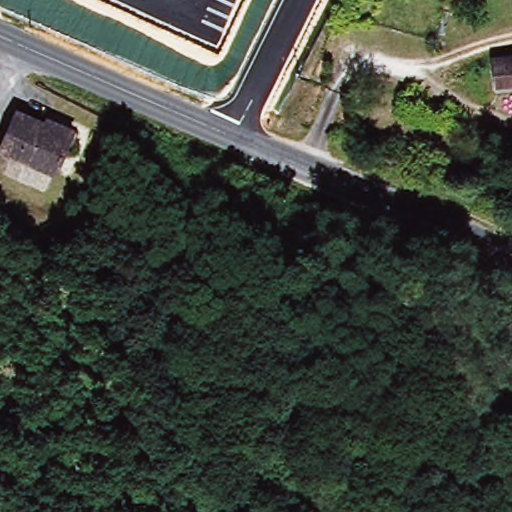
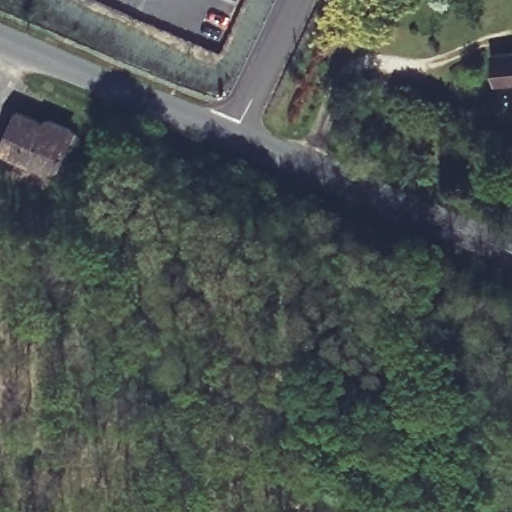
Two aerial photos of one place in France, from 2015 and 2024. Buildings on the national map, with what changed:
unchanged [(501,86),(498,58),(512,57),(512,85),(501,86)]
unchanged [(0,149),(17,111),(45,123),(47,119),(73,131),(70,140),(54,175),(0,152),(0,149)]

